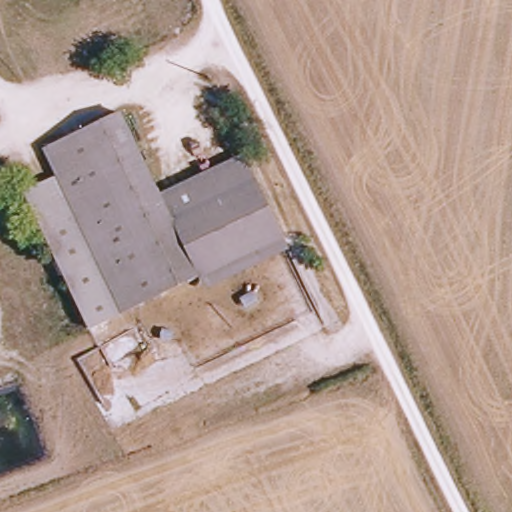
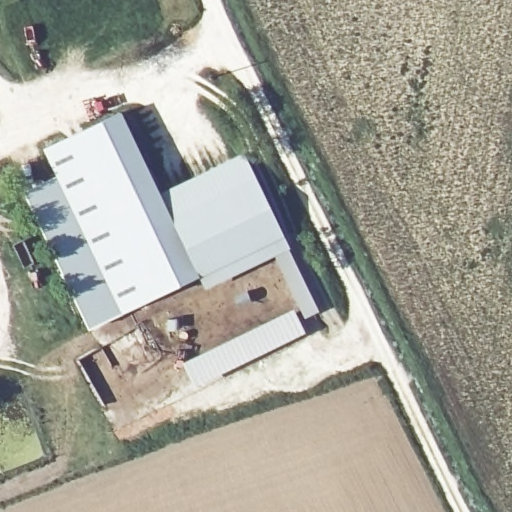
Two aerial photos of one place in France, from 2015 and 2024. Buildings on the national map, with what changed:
unchanged [(246,154),(292,248),(205,288),(198,276),(91,329),(31,189),(56,178),(44,148),(127,110),(163,193),(246,154)]
new [(294,310),(306,333),(196,387),(184,363),(294,310)]

